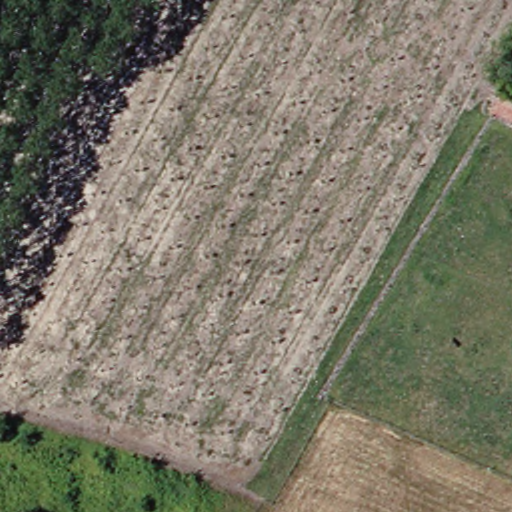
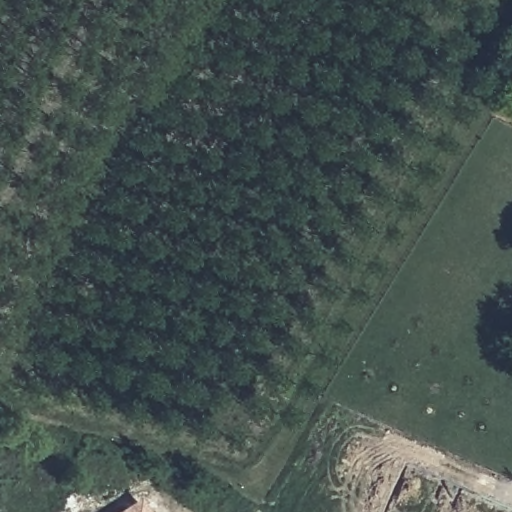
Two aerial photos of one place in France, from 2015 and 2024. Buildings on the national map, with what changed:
new [(148,512),(124,512),(141,500),(148,512)]

